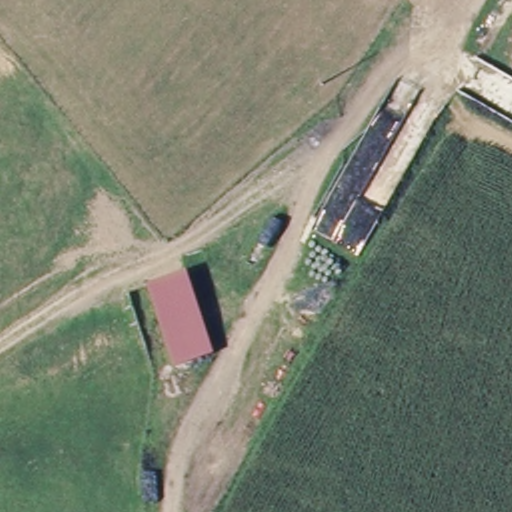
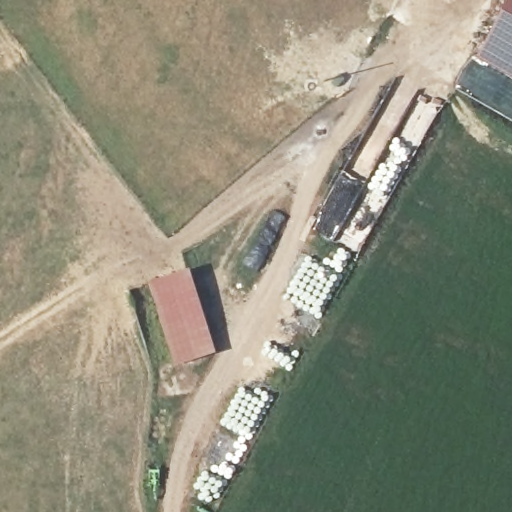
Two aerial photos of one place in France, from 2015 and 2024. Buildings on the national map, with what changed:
new [(512,0),(512,77),(479,59),(512,0)]
unchanged [(174,368),(147,287),(185,274),(212,356),(174,368)]

